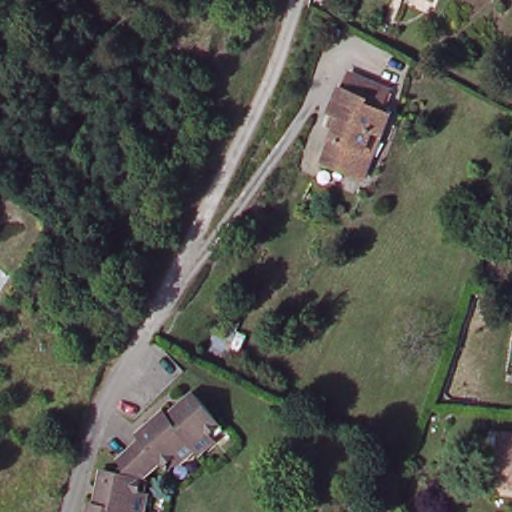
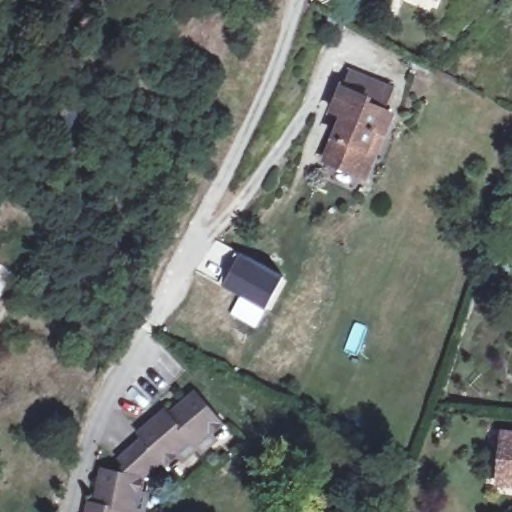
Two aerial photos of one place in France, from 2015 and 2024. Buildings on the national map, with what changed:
unchanged [(364,178),(332,165),(343,136),(332,131),(338,118),(347,93),(354,95),(360,80),(397,94),(389,114),(396,117),(387,141),(372,181),(364,178)]
new [(240,254),(286,278),(269,311),(223,286),(240,254)]
unchanged [(90,502),(96,504),(103,470),(124,474),(127,467),(120,459),(146,438),(141,433),(167,411),(172,416),(196,395),(223,425),(228,431),(218,440),(202,453),(198,448),(182,462),(172,471),(167,466),(162,461),(146,477),(145,480),(153,480),(150,496),(146,512),(88,512),(90,502)]
unchanged [(506,435),(512,435),(512,486),(500,485),(501,477),(506,435)]

